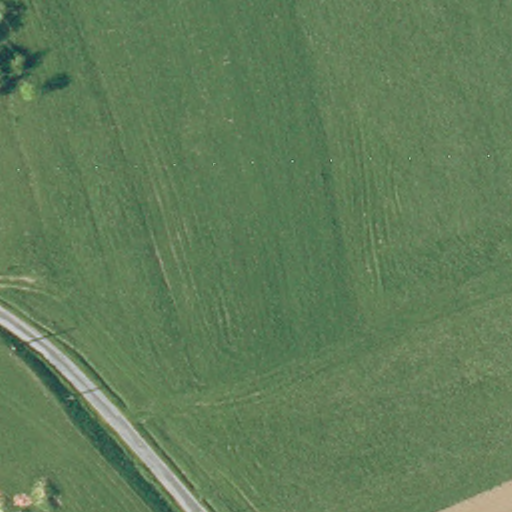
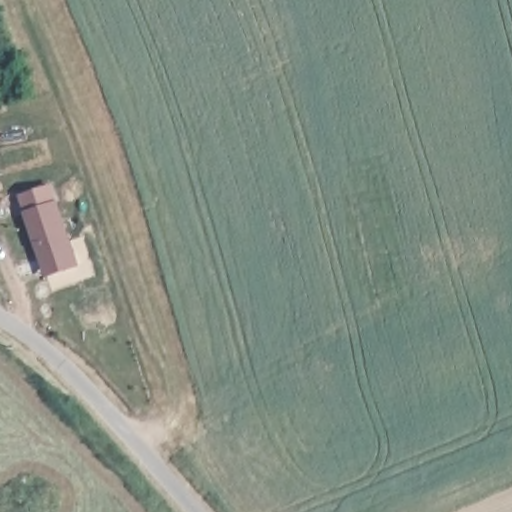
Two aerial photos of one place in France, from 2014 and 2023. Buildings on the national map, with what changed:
new [(80,264),(46,275),(25,212),(58,200),(80,264)]

